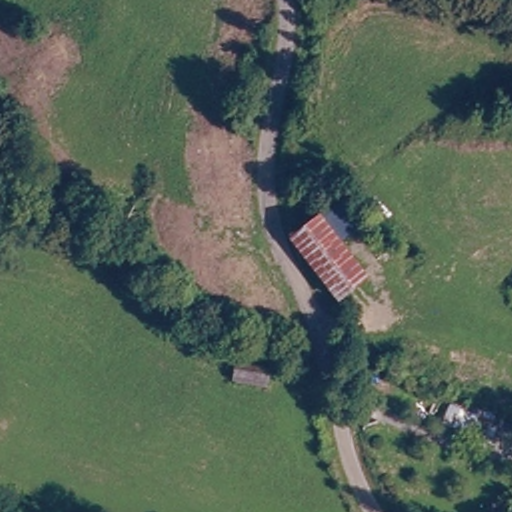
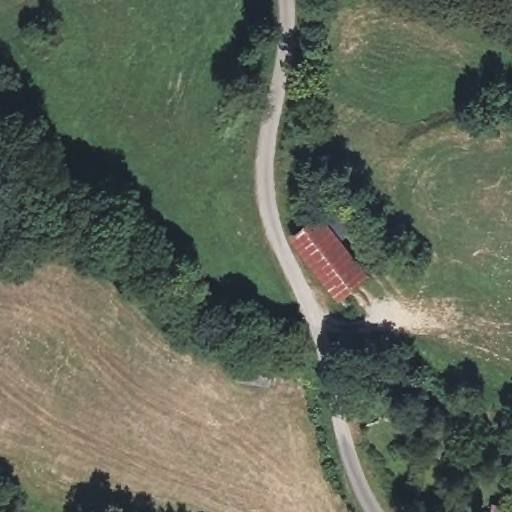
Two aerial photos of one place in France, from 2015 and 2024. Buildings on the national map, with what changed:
unchanged [(373,208),(392,228),(377,244),(375,241),(357,224),(366,216),(373,208)]
unchanged [(293,240),(318,223),(365,280),(338,302),(293,240)]
unchanged [(258,377),(225,372),(227,349),(261,356),(258,377)]

